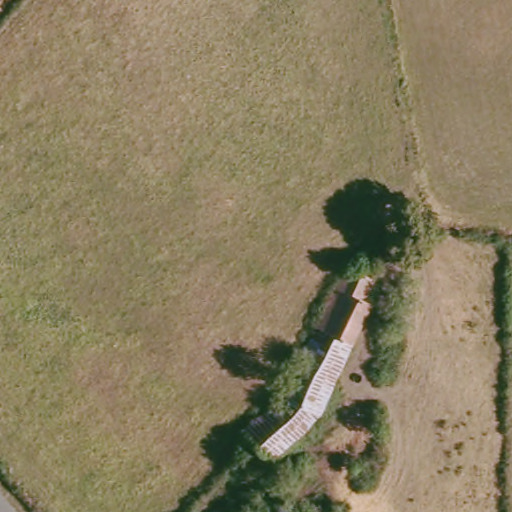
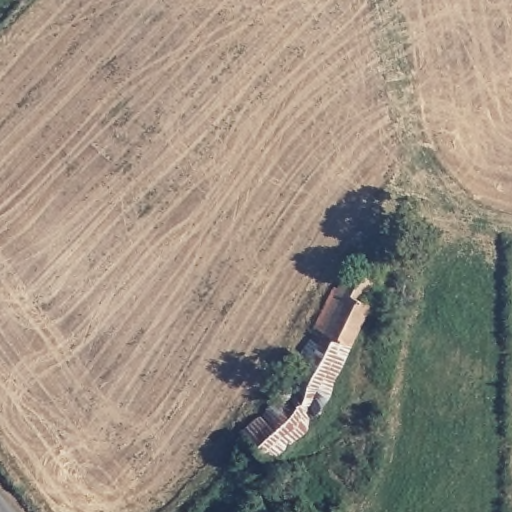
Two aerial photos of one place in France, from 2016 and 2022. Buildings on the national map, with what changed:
unchanged [(386,271),(374,300),(381,303),(331,410),(280,458),(249,430),(284,392),(303,353),(309,356),(323,326),(318,323),(335,284),(342,288),(351,267),(359,271),(364,262),(386,271)]

